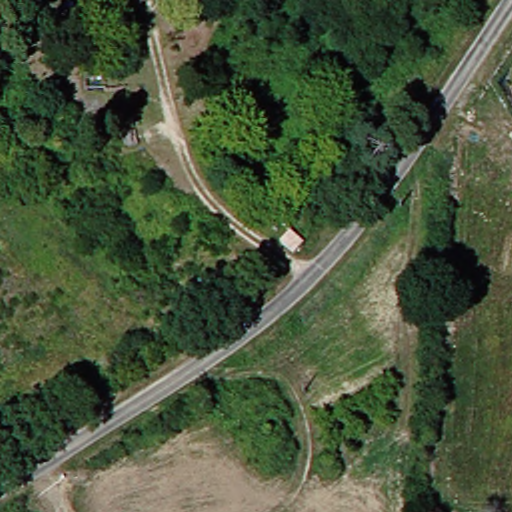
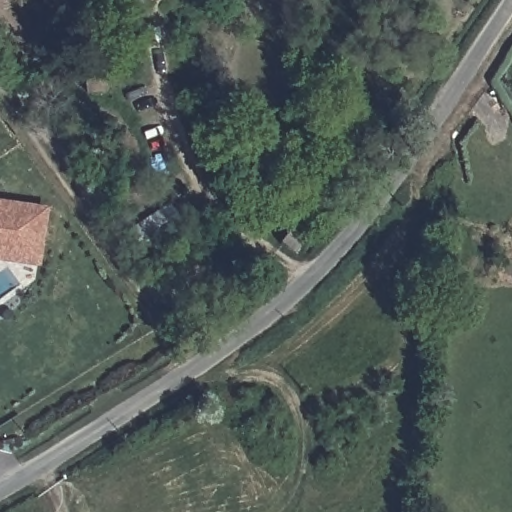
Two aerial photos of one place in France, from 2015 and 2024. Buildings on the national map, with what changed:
new [(40,268),(0,262),(0,200),(49,207),(40,268)]
new [(172,204),(181,221),(145,240),(136,223),(172,204)]

